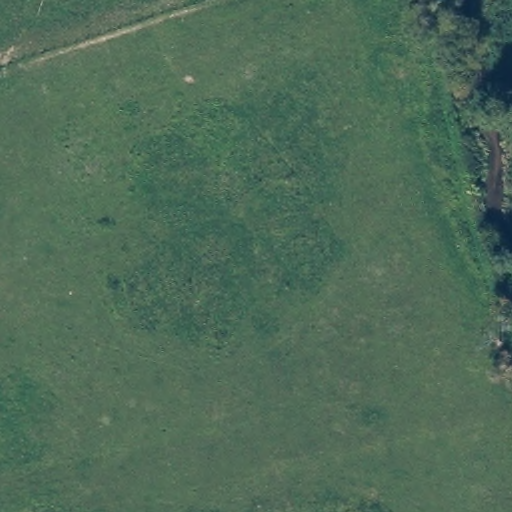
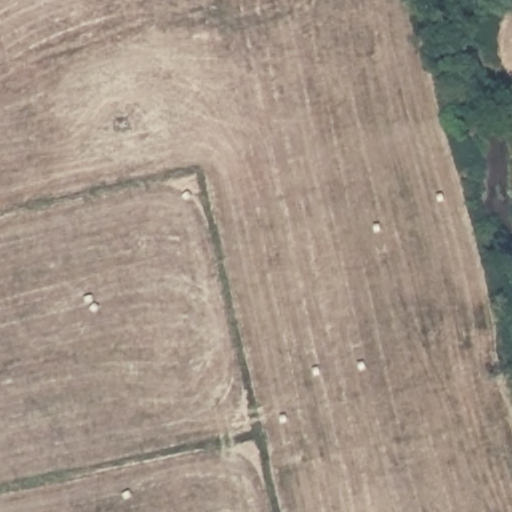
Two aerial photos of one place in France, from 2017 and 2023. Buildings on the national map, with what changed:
[]

